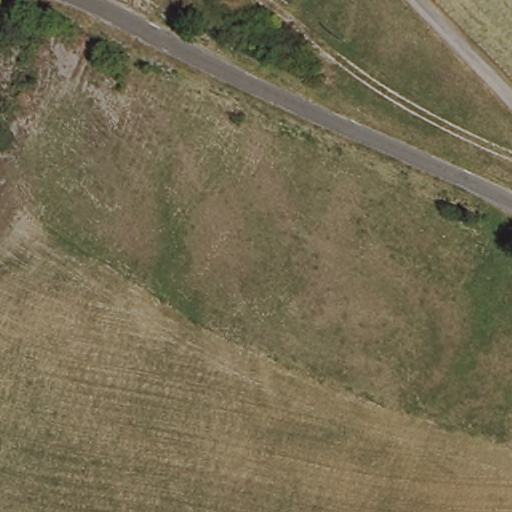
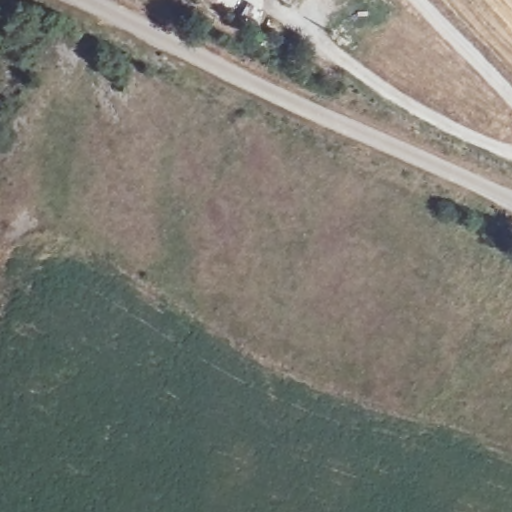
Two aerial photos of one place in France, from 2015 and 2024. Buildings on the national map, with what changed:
unchanged [(283,1),(281,0),(284,0),(283,1)]

